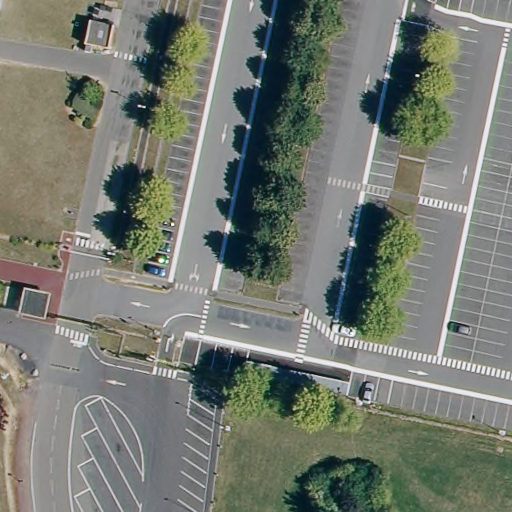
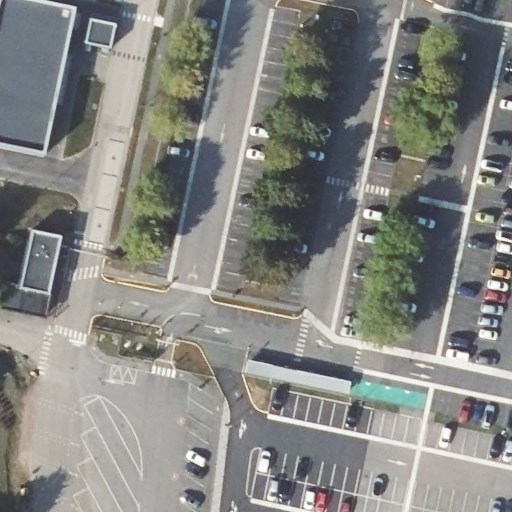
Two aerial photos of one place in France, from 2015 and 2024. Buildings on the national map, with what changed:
new [(74,9),(42,156),(0,147),(0,0),(34,0),(74,9)]
unchanged [(85,45),(90,21),(114,26),(109,50),(85,45)]
new [(0,299),(2,285),(21,289),(32,234),(60,239),(44,319),(0,310),(0,299)]
demolished [(26,291),(48,295),(43,318),(21,313),(22,310),(24,301),(26,291)]

